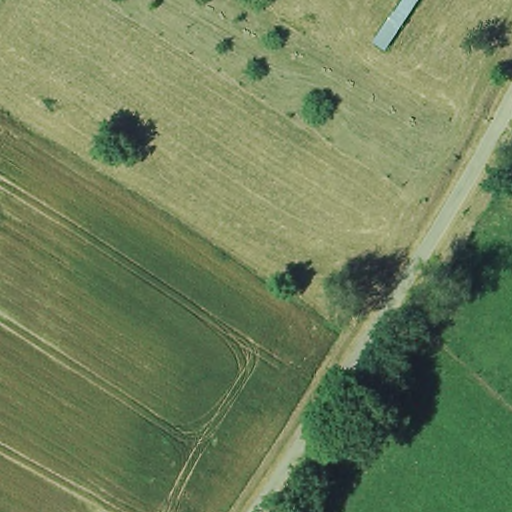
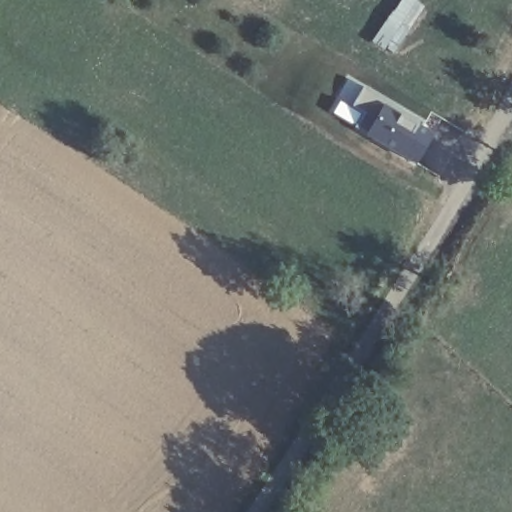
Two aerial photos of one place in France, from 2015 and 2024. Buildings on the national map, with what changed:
unchanged [(433,4),(428,0),(435,0),(433,4)]
new [(440,131),(416,169),(327,113),(348,79),(440,131)]

